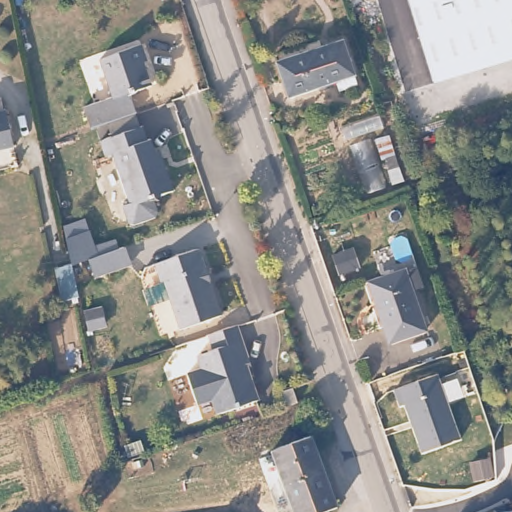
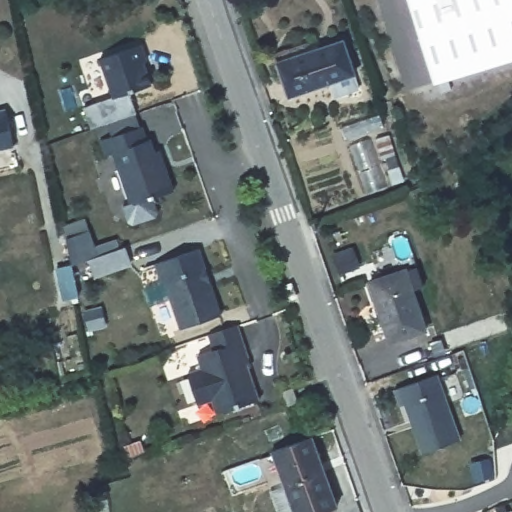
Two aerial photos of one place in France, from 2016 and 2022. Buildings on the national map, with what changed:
unchanged [(408,0),(512,0),(512,55),(431,79),(408,0)]
unchanged [(354,83),(334,91),(329,80),(285,98),(269,58),(314,40),(317,48),(338,40),(354,83)]
unchanged [(144,41),(150,57),(145,59),(153,82),(131,89),(138,110),(93,126),(86,104),(115,94),(101,56),(144,41)]
unchanged [(5,106),(12,143),(0,146),(0,107),(5,106)]
unchanged [(110,122),(138,112),(142,124),(145,123),(150,137),(153,136),(160,157),(165,155),(177,187),(134,202),(115,150),(108,153),(103,138),(114,134),(110,122)]
unchanged [(220,306),(179,320),(163,273),(160,274),(154,256),(197,241),(220,306)]
unchanged [(81,246),(85,259),(72,263),(69,249),(81,246)]
unchanged [(122,249),(128,266),(94,277),(88,261),(122,249)]
unchanged [(78,302),(63,305),(56,270),(70,267),(78,302)]
unchanged [(425,328),(388,342),(366,282),(402,269),(425,328)]
unchanged [(99,311),(102,328),(88,332),(84,314),(99,311)]
unchanged [(256,358),(253,360),(263,391),(224,405),(213,376),(199,381),(194,366),(208,361),(203,347),(219,341),(214,326),(242,316),(256,358)]
unchanged [(437,374),(459,439),(422,451),(413,426),(416,424),(414,417),(411,418),(405,402),(401,404),(395,388),(437,374)]
unchanged [(298,402),(287,407),(282,394),(293,390),(298,402)]
unchanged [(342,502),(314,512),(293,512),(282,510),(262,457),(277,451),(276,447),(316,432),(342,502)]
unchanged [(512,509),(512,512),(495,512),(494,507),(501,506),(502,510),(512,509)]

